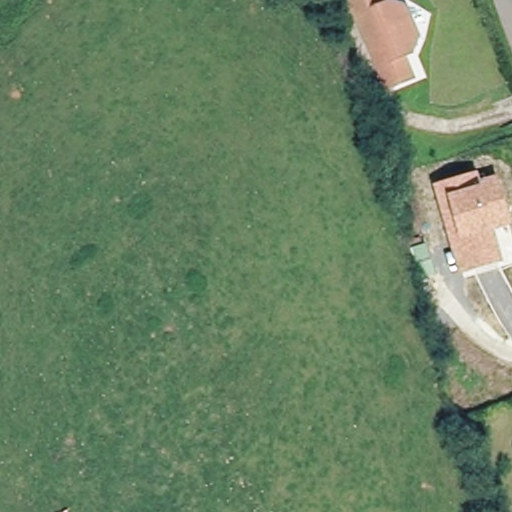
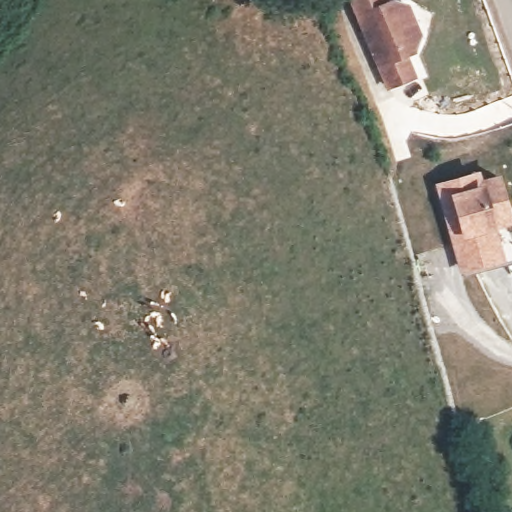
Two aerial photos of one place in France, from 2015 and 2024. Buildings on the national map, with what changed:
unchanged [(391,10),(404,16),(416,41),(410,59),(403,64),(411,85),(389,96),(349,3),(355,0),(381,0),(387,11),(391,10)]
unchanged [(435,183),(479,172),(481,179),(500,174),(512,219),(512,223),(495,229),(504,261),(461,274),(435,183)]

